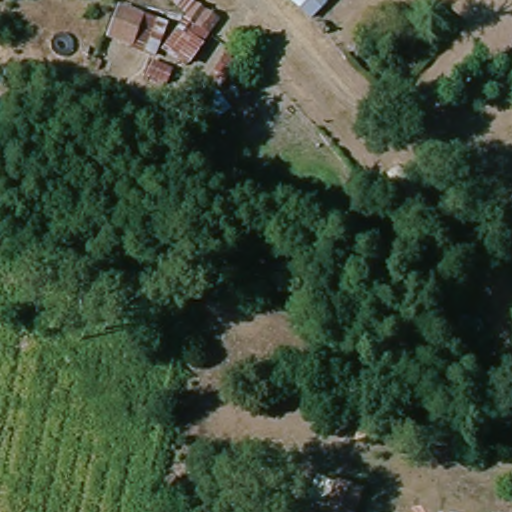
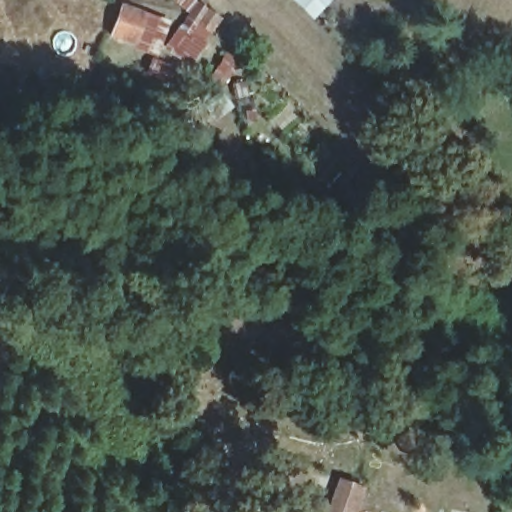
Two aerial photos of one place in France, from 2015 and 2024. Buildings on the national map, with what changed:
unchanged [(133,0),(171,19),(167,34),(156,31),(149,48),(112,32),(126,0),(133,0)]
unchanged [(194,13),(180,0),(202,0),(219,14),(207,43),(185,25),(194,13)]
unchanged [(335,0),(321,15),(305,0),(335,0)]
new [(365,488),(356,512),(302,512),(307,497),(328,505),(337,478),(365,488)]
demolished [(355,509),(354,512),(330,512),(334,503),(355,509)]

